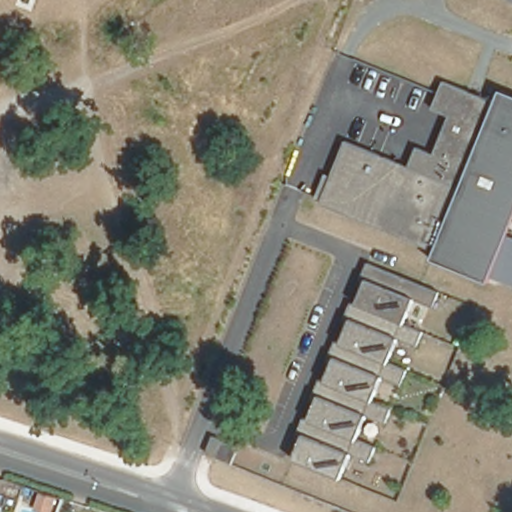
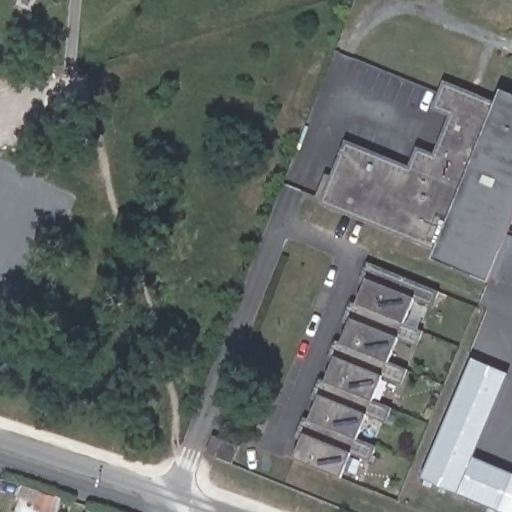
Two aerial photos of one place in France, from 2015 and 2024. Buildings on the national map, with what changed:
unchanged [(512,2),(507,0),(512,0),(512,2)]
unchanged [(408,167),(416,147),(431,152),(448,112),(431,106),(441,81),(491,102),(496,91),(512,97),(512,226),(508,235),(512,236),(512,291),(426,260),(430,249),(319,205),(344,142),(408,167)]
unchanged [(437,290),(431,307),(411,302),(405,322),(420,327),(414,346),(397,342),(389,359),(407,366),(398,385),(381,380),(375,398),(391,405),(384,421),(366,417),(358,438),(374,445),(368,460),(349,456),(342,480),(291,463),(297,450),(290,447),(369,261),(437,290)]
new [(466,456),(512,476),(512,512),(500,512),(417,477),(466,360),(500,372),(466,456)]
demolished [(53,512),(38,512),(40,506),(53,511),(53,512)]

